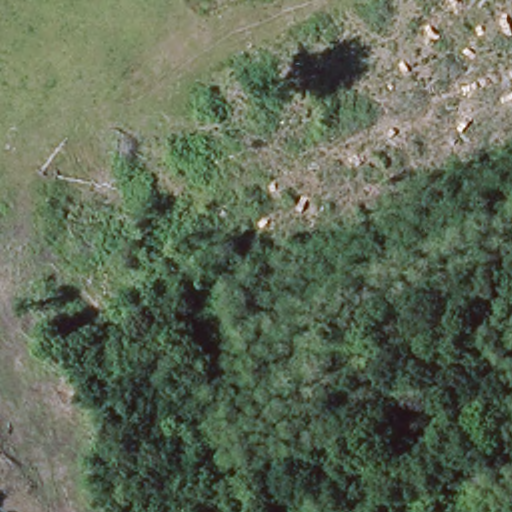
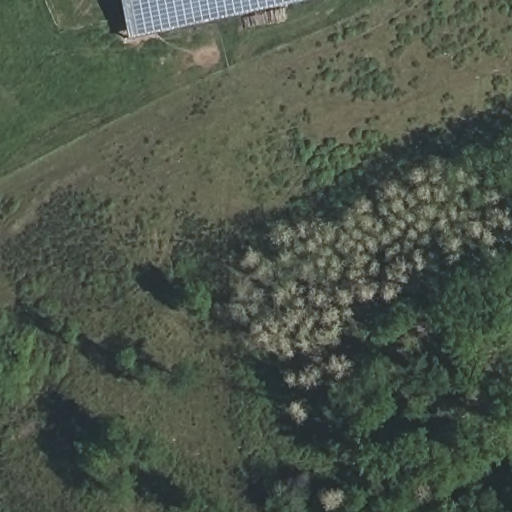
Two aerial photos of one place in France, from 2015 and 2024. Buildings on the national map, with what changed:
new [(125,0),(315,0),(131,42),(125,0)]

